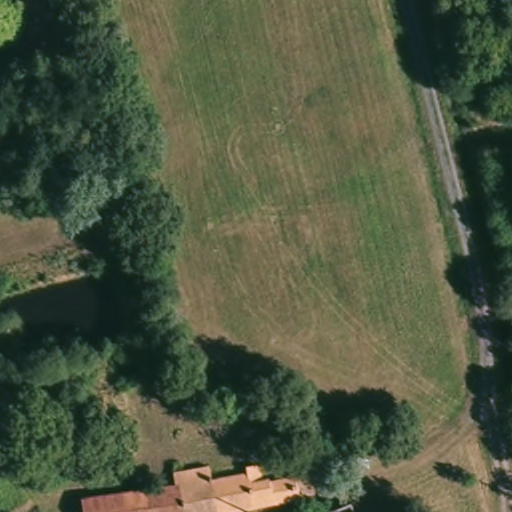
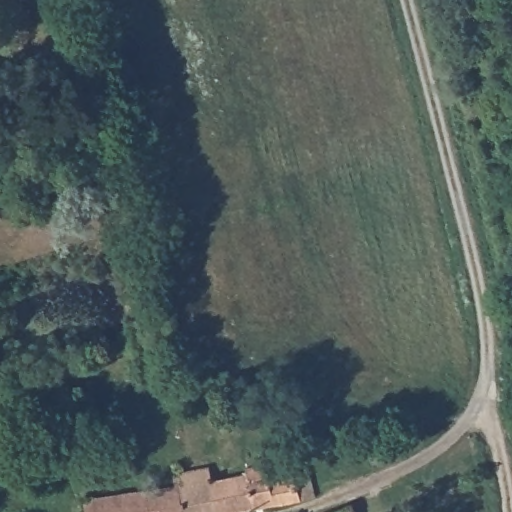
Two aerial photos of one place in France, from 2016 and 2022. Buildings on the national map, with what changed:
unchanged [(169,474),(206,466),(209,480),(215,512),(150,512),(146,488),(171,486),(169,474)]
unchanged [(240,468),(256,467),(260,482),(284,478),(282,473),(301,469),(310,498),(244,512),(215,512),(209,480),(242,475),(240,468)]
unchanged [(150,512),(81,512),(79,499),(146,488),(150,512)]

